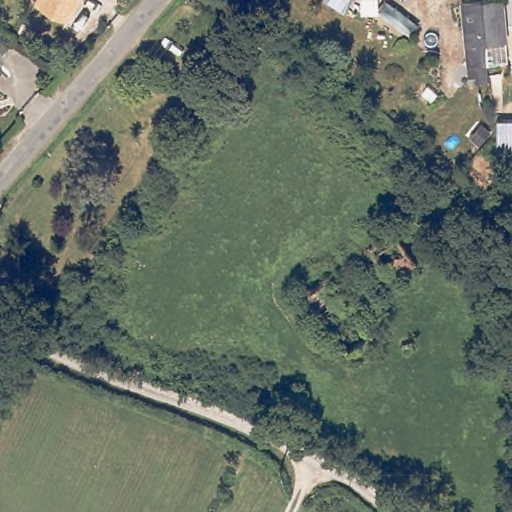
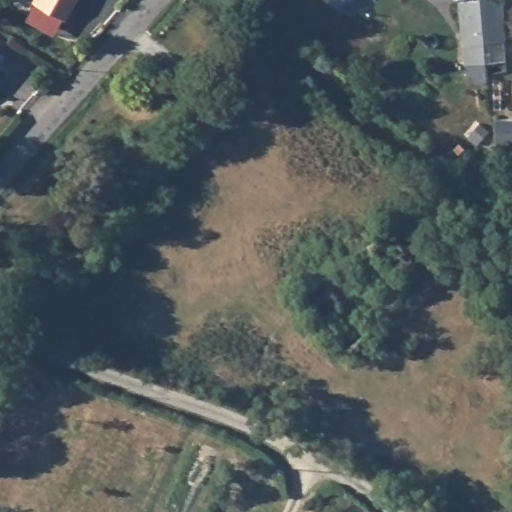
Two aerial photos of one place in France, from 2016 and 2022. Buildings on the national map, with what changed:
unchanged [(69,19),(38,0),(80,0),(69,19)]
unchanged [(481,82),(480,72),(472,73),(470,42),(467,0),(503,0),(508,59),(492,60),(493,81),(481,82)]
unchanged [(0,71),(4,75),(0,79),(0,71)]
unchanged [(508,114),(512,146),(491,148),(488,115),(508,114)]
unchanged [(400,240),(422,268),(396,286),(375,256),(376,255),(400,240)]
unchanged [(322,277),(325,275),(372,335),(347,352),(303,294),(322,277)]

